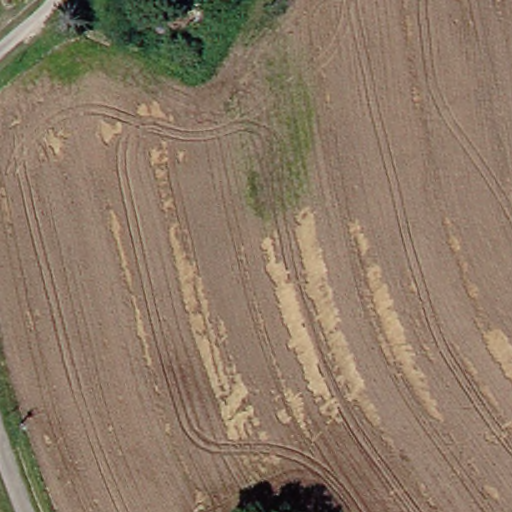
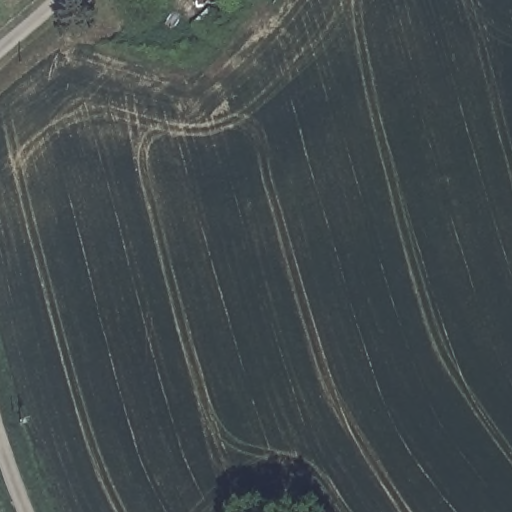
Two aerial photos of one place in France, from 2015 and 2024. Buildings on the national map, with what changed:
[]

